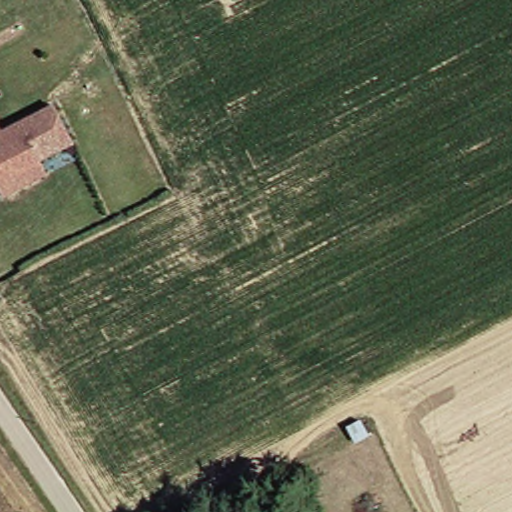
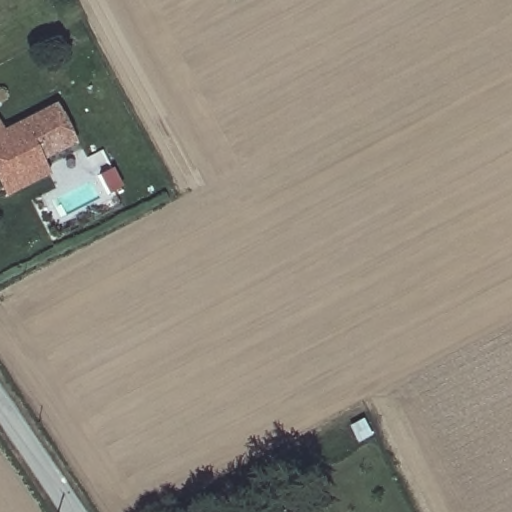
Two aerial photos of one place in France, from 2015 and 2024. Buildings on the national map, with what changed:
unchanged [(0,194),(0,193),(0,127),(49,101),(69,140),(37,158),(44,172),(0,194)]

